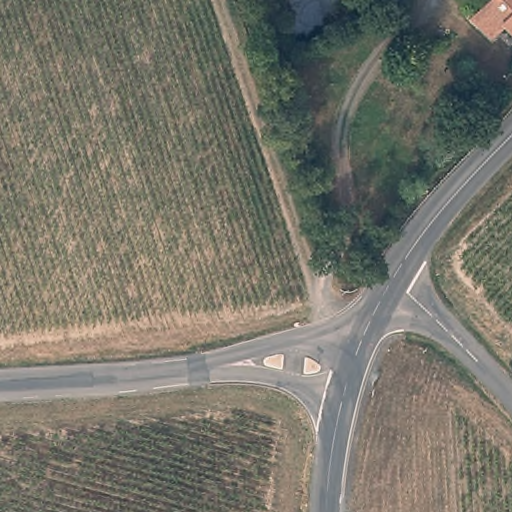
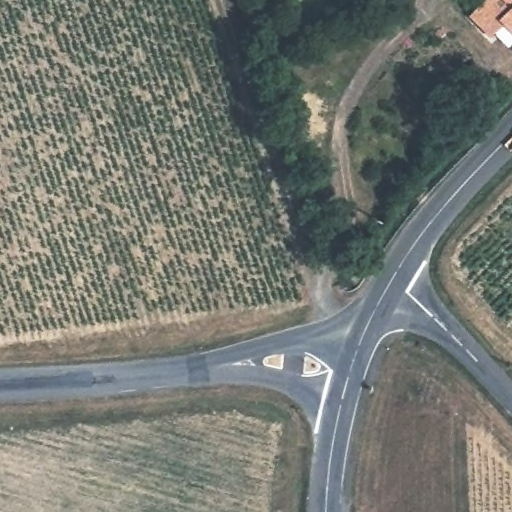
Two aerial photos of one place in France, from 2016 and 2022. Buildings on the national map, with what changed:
unchanged [(512,29),(507,25),(495,37),(474,16),(489,0),(512,0),(512,29)]

